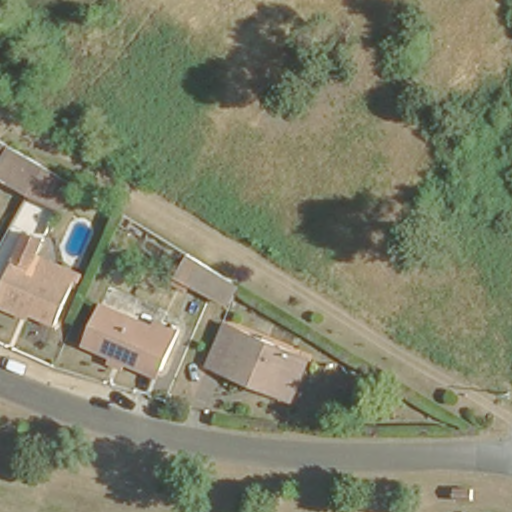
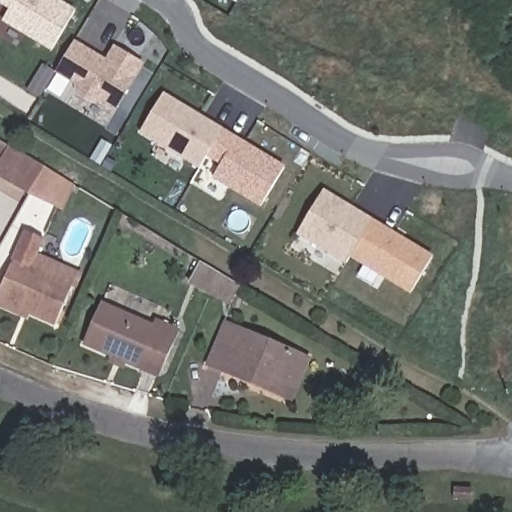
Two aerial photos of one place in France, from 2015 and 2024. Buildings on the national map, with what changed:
new [(0,5),(0,0),(60,0),(76,10),(52,52),(1,21),(8,9),(0,5)]
new [(105,58),(113,44),(145,63),(117,110),(102,101),(93,104),(76,94),(75,84),(55,72),(74,40),(105,58)]
new [(220,165),(206,157),(200,169),(139,132),(163,92),(285,166),(260,208),(211,178),(220,165)]
unchanged [(44,161),(37,181),(0,167),(0,149),(5,134),(11,138),(14,140),(44,161)]
unchanged [(44,161),(72,179),(65,206),(32,194),(37,181),(44,161)]
new [(323,189),(433,255),(411,294),(350,258),(346,264),(296,234),(323,189)]
unchanged [(19,236),(38,239),(32,267),(72,277),(62,316),(38,310),(2,301),(19,236)]
unchanged [(193,253),(241,281),(232,303),(181,274),(193,253)]
unchanged [(114,355),(89,348),(102,305),(160,323),(162,316),(177,320),(164,361),(150,358),(148,365),(129,360),(114,355)]
unchanged [(312,351),(292,394),(209,365),(228,318),(312,351)]
unchanged [(485,476),(485,490),(469,490),(469,475),(485,476)]
new [(471,487),(471,501),(455,501),(455,486),(471,487)]

